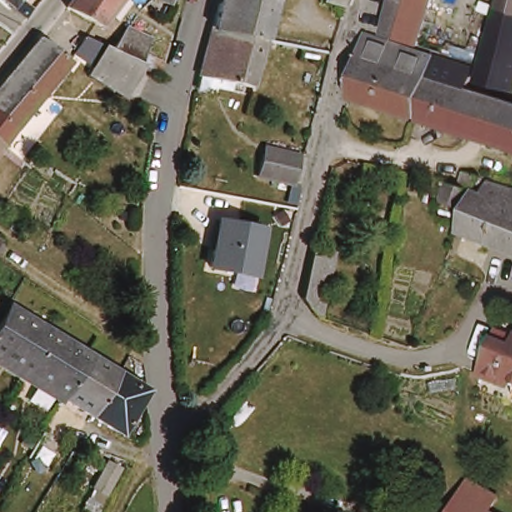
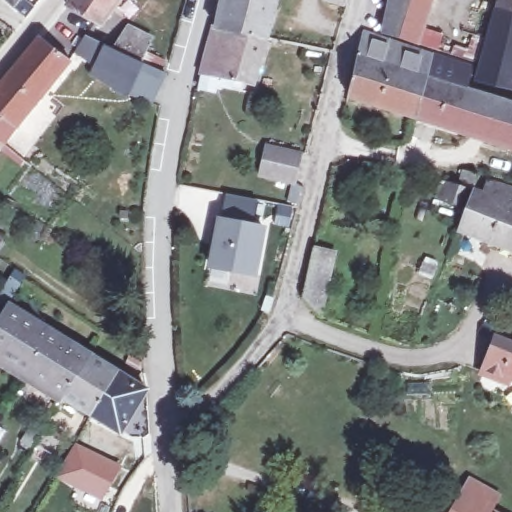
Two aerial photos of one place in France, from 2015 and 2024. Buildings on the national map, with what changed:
unchanged [(28,10),(24,15),(20,19),(10,12),(9,11),(0,3),(0,0),(16,0),(28,10)]
unchanged [(102,22),(65,2),(67,0),(119,0),(102,22)]
unchanged [(171,6),(169,11),(163,9),(165,3),(159,1),(159,0),(175,0),(173,7),(171,6)]
unchanged [(270,25),(267,36),(259,35),(217,26),(211,24),(211,23),(214,15),(220,0),(276,0),(270,25)]
unchanged [(345,3),(342,2),(341,8),(328,5),(323,3),(324,0),(345,0),(345,3)]
unchanged [(417,47),(405,43),(385,36),(383,35),(390,2),(391,0),(432,0),(417,47)]
unchanged [(512,16),(495,13),(498,0),(512,0),(512,16)]
unchanged [(512,91),(475,84),(480,68),(487,45),(492,28),(495,13),(512,16),(512,91)]
unchanged [(214,83),(212,90),(198,87),(201,73),(198,72),(202,56),(209,30),(211,24),(217,26),(259,35),(267,36),(253,84),(242,81),(240,89),(214,83)]
unchanged [(123,29),(147,41),(142,55),(162,63),(157,74),(153,73),(140,67),(109,53),(123,29)]
unchanged [(413,121),(347,98),(363,34),(432,57),(413,121)]
unchanged [(4,82),(40,39),(70,64),(13,133),(4,147),(0,144),(0,86),(4,82)]
unchanged [(476,63),(475,66),(465,63),(472,40),(482,42),(476,63)]
unchanged [(140,67),(124,98),(85,77),(100,48),(109,53),(140,67)]
unchanged [(467,89),(512,104),(512,152),(413,121),(432,57),(472,72),(467,89)]
unchanged [(4,147),(0,153),(0,144),(4,147)]
unchanged [(300,157),(294,187),(257,179),(263,150),(300,157)]
unchanged [(436,210),(442,192),(455,195),(460,180),(477,186),(475,188),(472,200),(468,198),(460,218),(436,210)]
unchanged [(458,235),(460,229),(470,202),(472,200),(482,202),(486,191),(488,192),(512,199),(512,259),(457,239),(458,235)]
unchanged [(258,278),(208,270),(217,217),(267,226),(258,278)]
unchanged [(5,246),(2,250),(0,249),(0,243),(5,246)]
unchanged [(332,251),(318,316),(313,314),(310,313),(308,311),(307,308),(300,297),(300,296),(301,295),(312,245),(332,251)]
unchanged [(0,358),(0,310),(4,304),(84,352),(60,390),(57,394),(0,358)]
unchanged [(507,382),(480,373),(494,338),(497,328),(512,334),(512,374),(510,374),(507,382)]
unchanged [(111,370),(85,411),(57,394),(60,390),(84,352),(111,370)]
unchanged [(140,388),(115,429),(85,411),(111,370),(140,388)]
new [(103,501),(55,478),(77,442),(122,466),(103,501)]
demolished [(112,481),(106,489),(104,493),(102,496),(90,489),(105,464),(119,472),(112,481)]
unchanged [(488,509),(494,512),(449,512),(460,493),(462,495),(470,480),(496,495),(488,509)]

